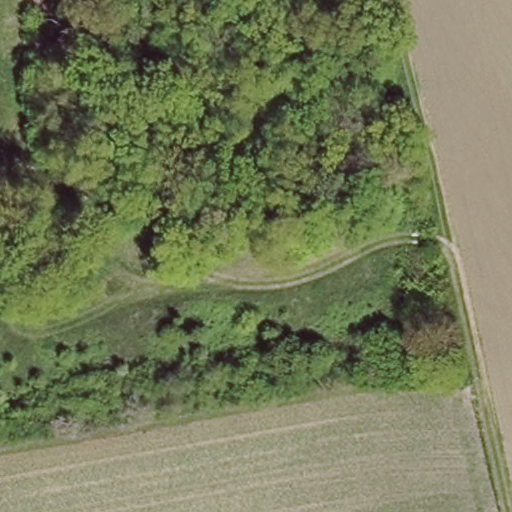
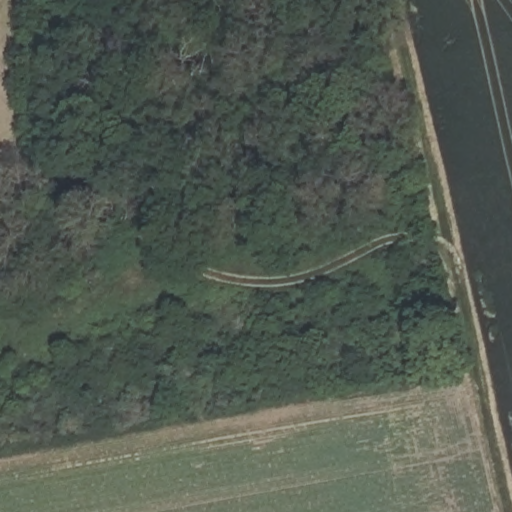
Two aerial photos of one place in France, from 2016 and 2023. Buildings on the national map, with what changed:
unchanged [(360,118),(363,138),(343,142),(338,123),(360,118)]
unchanged [(422,350),(420,334),(436,332),(438,348),(422,350)]

